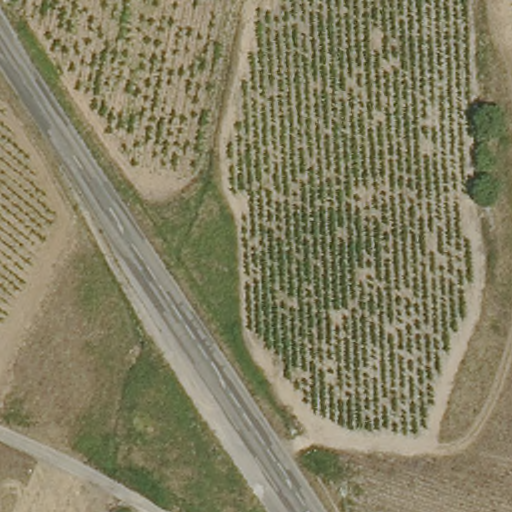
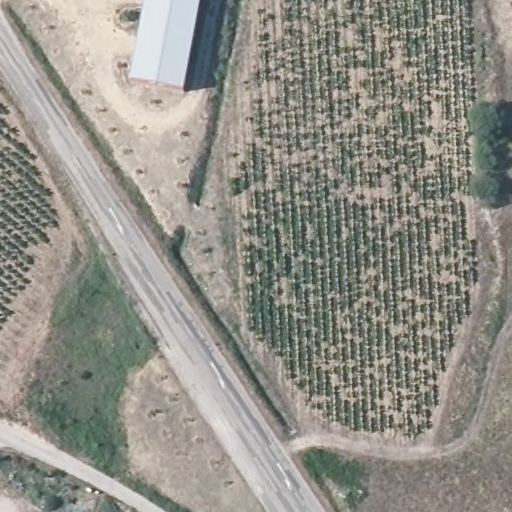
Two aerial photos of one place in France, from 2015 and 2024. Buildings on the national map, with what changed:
new [(185,97),(133,87),(149,0),(202,0),(185,97)]

